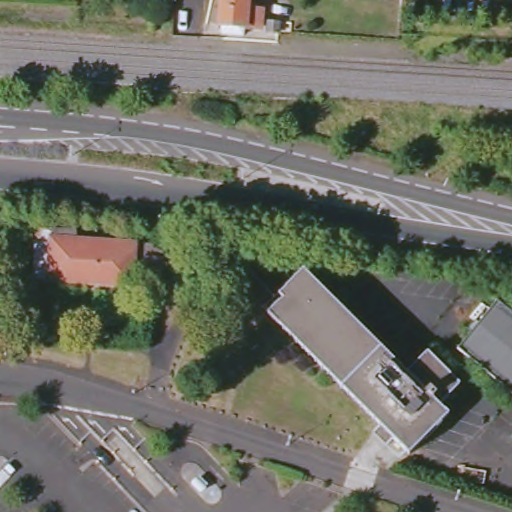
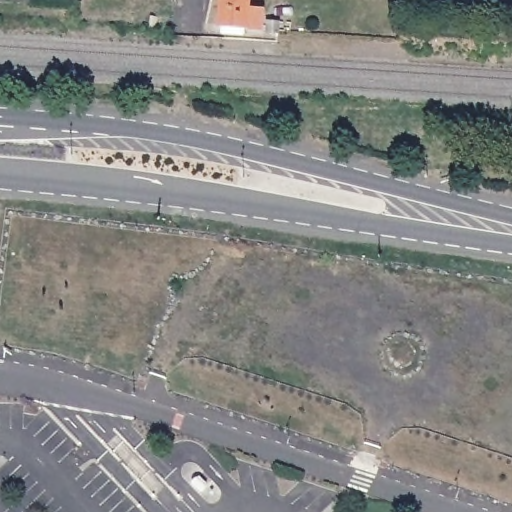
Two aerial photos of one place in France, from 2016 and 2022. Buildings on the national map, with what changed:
unchanged [(219,29),(221,0),(253,0),(253,7),(266,9),(264,31),(219,29)]
demolished [(136,289),(32,282),(36,230),(56,231),(55,239),(138,245),(136,289)]
demolished [(161,274),(143,273),(146,245),(163,246),(161,274)]
demolished [(271,315),(287,300),(284,297),(308,272),(410,373),(429,352),(463,386),(444,406),(452,416),(413,455),(271,315)]
demolished [(242,287),(254,275),(279,300),(267,310),(242,287)]
demolished [(499,302),(512,313),(512,392),(460,350),(499,302)]

